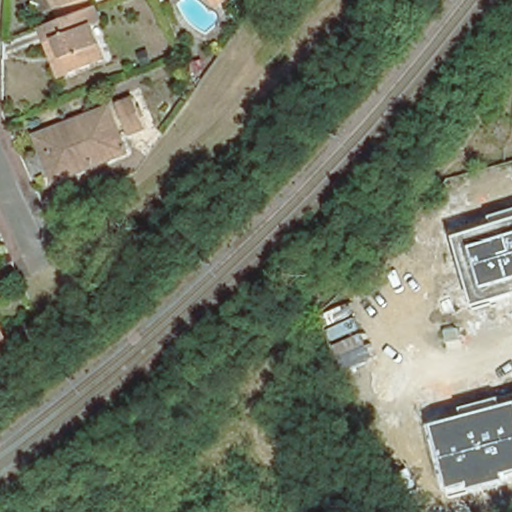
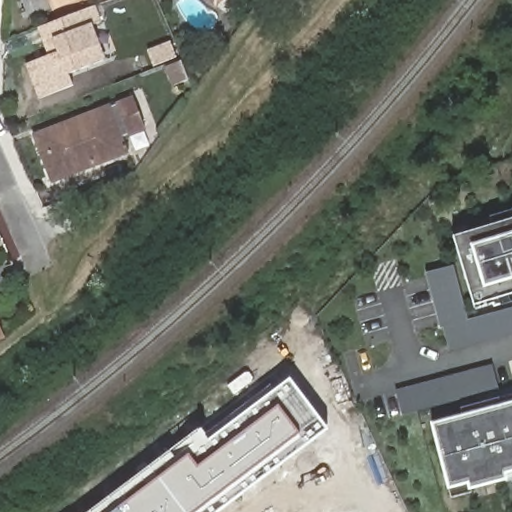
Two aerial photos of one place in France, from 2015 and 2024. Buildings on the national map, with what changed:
unchanged [(52,0),(67,0),(55,5),(52,0)]
unchanged [(211,0),(226,0),(219,7),(211,0)]
unchanged [(48,44),(41,27),(95,6),(102,22),(110,42),(100,45),(106,61),(72,75),(61,80),(48,44)]
new [(61,80),(69,76),(72,85),(38,100),(25,65),(52,55),(61,80)]
unchanged [(130,101),(139,122),(127,127),(119,105),(130,101)]
unchanged [(70,126),(69,125),(104,111),(120,153),(54,180),(37,140),(70,126)]
unchanged [(455,237),(512,220),(512,294),(475,305),(455,237)]
new [(453,263),(455,263),(469,316),(441,324),(427,270),(453,263)]
new [(512,327),(449,344),(443,325),(512,306),(512,327)]
unchanged [(4,336),(0,338),(0,329),(4,336)]
new [(495,367),(500,386),(402,413),(397,393),(495,367)]
new [(220,512),(89,512),(199,428),(208,439),(289,379),(328,431),(220,512)]
unchanged [(431,425),(512,403),(512,482),(452,498),(431,425)]

